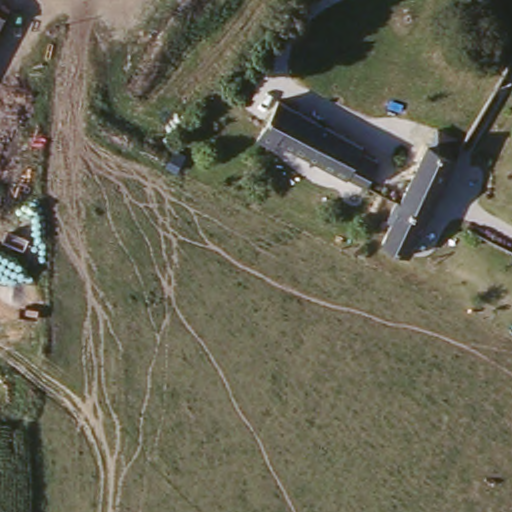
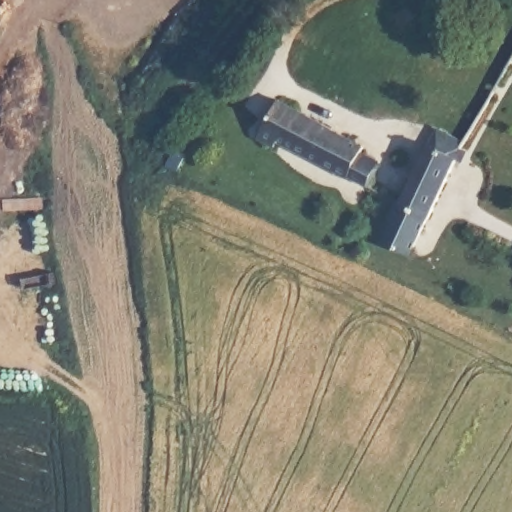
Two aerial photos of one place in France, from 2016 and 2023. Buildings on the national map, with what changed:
unchanged [(0,30),(0,8),(9,12),(0,30)]
unchanged [(278,136),(274,145),(254,132),(275,92),(363,144),(346,174),(278,136)]
unchanged [(394,206),(422,147),(431,127),(460,143),(451,162),(424,219),(394,206)]
unchanged [(424,219),(408,257),(379,245),(394,206),(424,219)]

